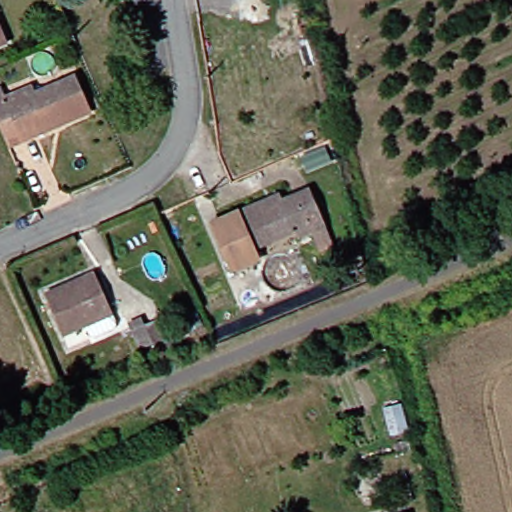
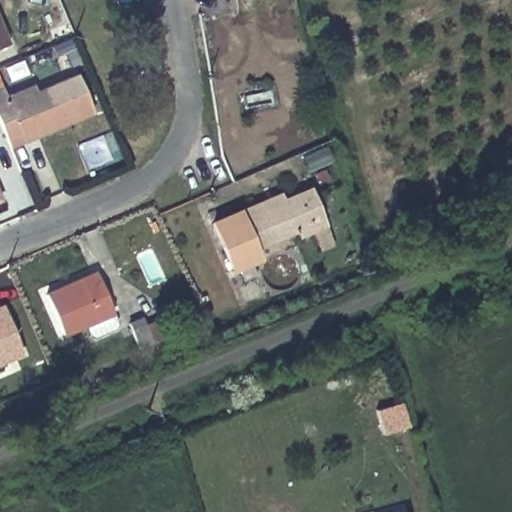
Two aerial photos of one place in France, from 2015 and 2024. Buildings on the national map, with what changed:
unchanged [(0,46),(0,21),(9,42),(0,46)]
unchanged [(39,129),(41,136),(13,147),(0,116),(0,91),(6,88),(10,97),(33,87),(35,93),(78,75),(94,112),(67,124),(51,131),(49,125),(39,129)]
unchanged [(310,165),(305,152),(331,142),(335,154),(310,165)]
unchanged [(326,252),(319,236),(305,242),(304,237),(260,255),(264,264),(239,275),(219,226),(286,198),(288,203),(315,191),(332,230),(339,246),(326,252)]
unchanged [(70,349),(64,334),(47,293),(98,273),(114,313),(120,328),(70,349)]
new [(26,351),(0,362),(0,306),(5,303),(26,351)]
unchanged [(392,434),(386,407),(403,403),(409,430),(392,434)]

